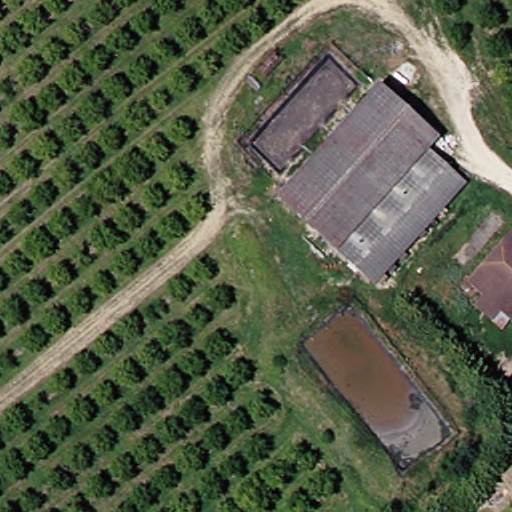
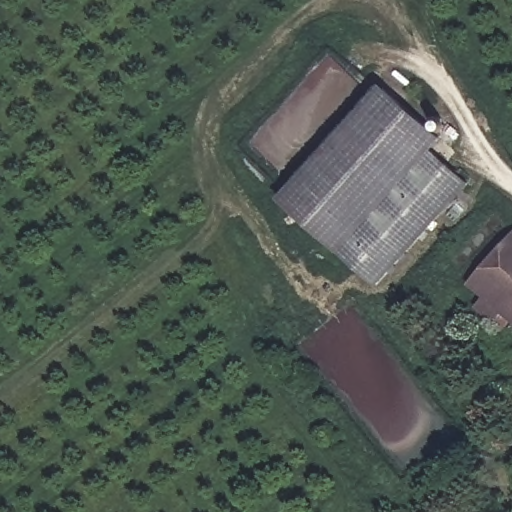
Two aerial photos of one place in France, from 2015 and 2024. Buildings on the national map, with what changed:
unchanged [(433,145),(421,157),(461,190),(368,290),(275,205),(376,93),(433,145)]
unchanged [(491,323),(475,311),(481,303),(467,289),(512,236),(512,326),(500,316),(491,323)]

